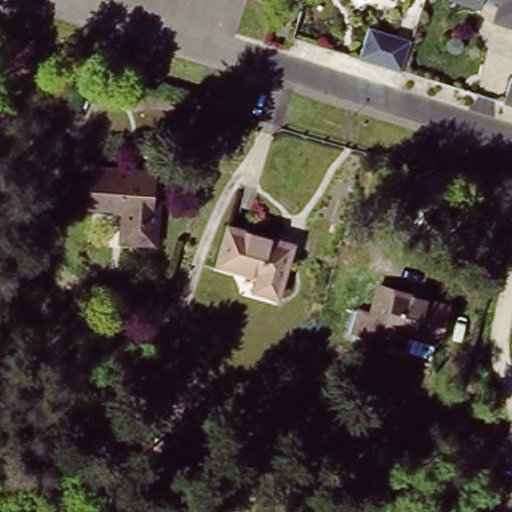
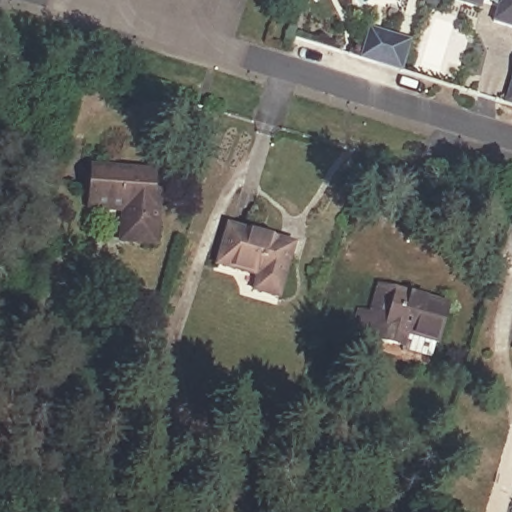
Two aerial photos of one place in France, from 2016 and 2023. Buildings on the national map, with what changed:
unchanged [(498,11),(484,7),(483,14),(450,4),(451,0),(512,0),(512,31),(494,26),(498,11)]
unchanged [(368,26),(415,42),(405,72),(358,57),(368,26)]
unchanged [(512,77),(512,111),(504,109),(512,77)]
unchanged [(158,184),(150,209),(160,212),(148,249),(113,239),(120,212),(81,201),(93,166),(158,184)]
unchanged [(279,304),(245,294),(253,272),(216,261),(227,228),(297,248),(279,304)]
unchanged [(371,327),(380,330),(392,291),(461,313),(449,352),(422,344),(417,358),(374,346),(366,343),(371,327)]

